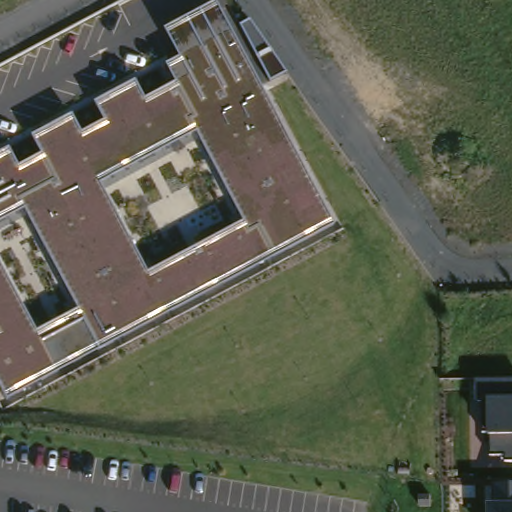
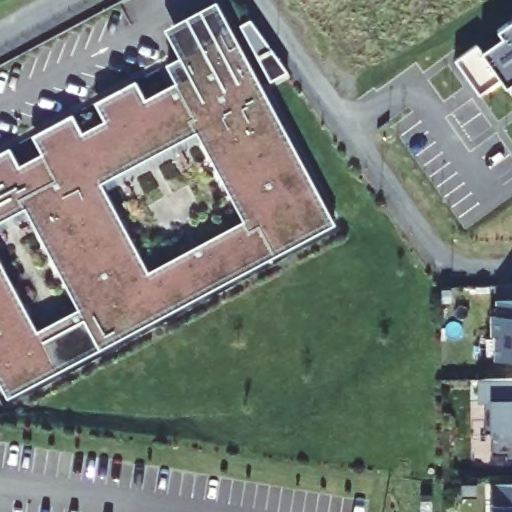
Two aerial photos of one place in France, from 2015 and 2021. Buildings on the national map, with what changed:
unchanged [(6,397),(0,384),(0,265),(35,332),(77,309),(24,208),(0,220),(0,151),(9,147),(17,166),(40,153),(31,135),(70,114),(80,132),(103,120),(94,102),(135,81),(145,99),(175,82),(165,65),(179,57),(164,29),(215,2),(332,222),(6,397)]
new [(477,49),(497,35),(493,28),(512,15),(512,77),(500,85),(495,77),(474,92),(450,57),(472,42),(477,49)]
unchanged [(249,20),(286,73),(270,81),(240,24),(249,20)]
new [(492,313),(491,298),(512,298),(512,340),(490,340),(490,332),(487,332),(486,313),(492,313)]
unchanged [(512,380),(512,460),(504,460),(503,455),(493,453),(492,434),(485,433),(483,402),(478,402),(477,380),(512,380)]
unchanged [(512,484),(512,512),(490,512),(490,502),(494,502),(494,484),(512,484)]

